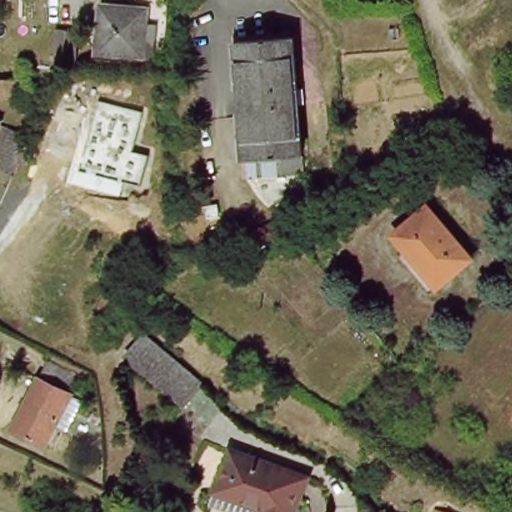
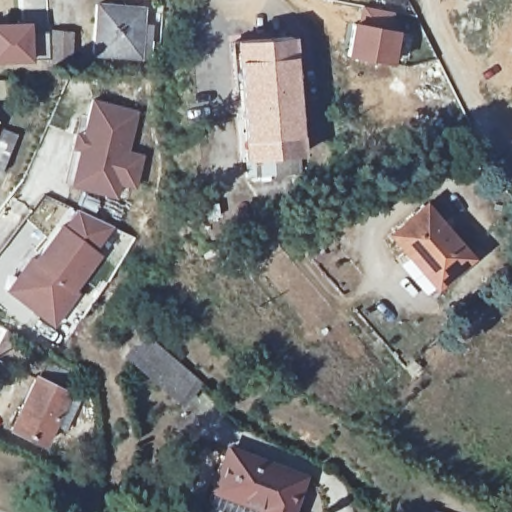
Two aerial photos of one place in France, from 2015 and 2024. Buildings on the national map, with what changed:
unchanged [(150,43),(140,42),(140,56),(93,53),(97,5),(143,8),(142,23),(152,24),(150,43)]
unchanged [(277,165),(247,167),(245,150),(244,150),(235,30),(291,26),(300,145),(302,163),(277,165)]
unchanged [(72,35),(68,65),(50,62),(52,33),(72,35)]
unchanged [(13,97),(0,97),(0,79),(12,79),(13,97)]
new [(512,88),(512,92),(510,90),(512,88)]
new [(70,187),(78,152),(72,151),(78,130),(85,132),(92,100),(140,110),(130,152),(147,155),(140,187),(125,185),(120,200),(70,187)]
unchanged [(1,174),(0,174),(0,130),(17,137),(1,174)]
unchanged [(402,260),(397,255),(407,246),(395,231),(426,205),(471,257),(436,287),(430,293),(402,260)]
new [(7,290),(30,257),(35,261),(63,224),(67,226),(78,212),(115,231),(99,253),(104,256),(76,296),(56,327),(7,290)]
unchanged [(273,222),(281,237),(252,251),(244,236),(273,222)]
unchanged [(125,356),(143,333),(200,382),(182,405),(125,356)]
unchanged [(35,380),(45,360),(77,375),(68,394),(80,400),(78,401),(63,432),(52,426),(43,445),(11,428),(35,380)]
unchanged [(309,473),(294,512),(253,512),(213,497),(233,445),(309,473)]
unchanged [(430,508),(441,512),(429,512),(430,508)]

